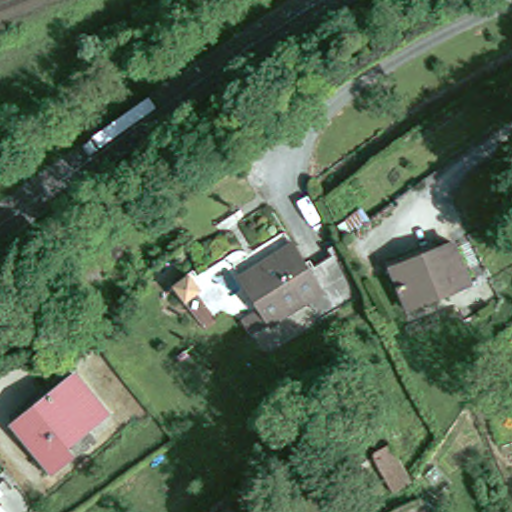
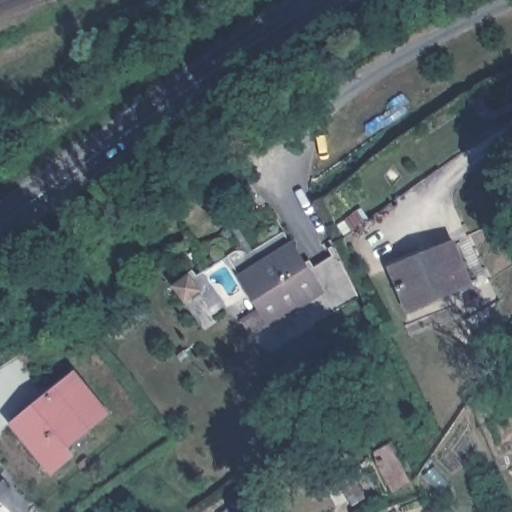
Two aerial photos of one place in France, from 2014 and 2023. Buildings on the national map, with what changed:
unchanged [(324,285),(313,293),(250,332),(240,314),(260,303),(245,278),(241,271),(263,258),(284,245),(295,239),(324,285)]
unchanged [(410,305),(393,262),(454,239),(470,282),(410,305)]
unchanged [(74,458),(53,474),(15,426),(77,377),(108,416),(67,448),(74,458)]
unchanged [(391,489),(372,454),(375,452),(369,442),(383,434),(408,481),(391,489)]
unchanged [(348,506),(332,481),(346,473),(361,498),(348,506)]

